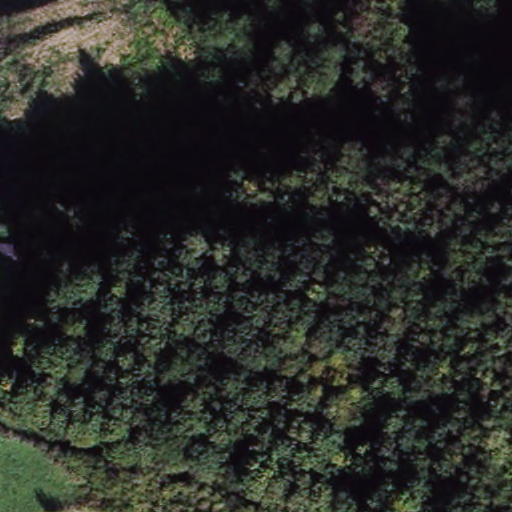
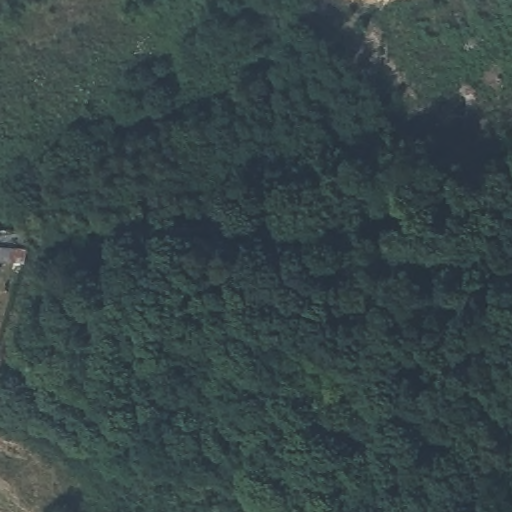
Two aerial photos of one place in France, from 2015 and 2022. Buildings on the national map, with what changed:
unchanged [(494,12),(494,13),(494,14),(494,15),(494,16),(494,17),(493,17),(493,18),(493,19),(492,19),(492,20),(491,20),(491,21),(490,21),(489,22),(488,23),(487,24),(486,24),(485,24),(485,25),(484,25),(483,25),(482,25),(481,25),(480,25),(479,25),(478,25),(477,25),(477,24),(476,24),(475,24),(474,23),(474,22),(473,22),(472,21),(471,20),(470,20),(470,19),(469,19),(469,18),(469,17),(469,16),(468,16),(468,15),(468,14),(468,13),(468,12),(468,11),(468,10),(468,9),(468,8),(468,7),(469,6),(469,5),(469,4),(470,4),(470,3),(471,3),(471,2),(472,2),(472,1),(473,1),(473,0),(474,0),(488,0),(489,0),(489,1),(490,1),(491,1),(491,2),(492,2),(492,3),(492,4),(493,4),(493,5),(494,5),(494,6),(494,7),(494,8),(494,9),(494,10),(494,11),(494,12)]
unchanged [(4,275),(0,275),(0,264),(3,264),(4,275)]

